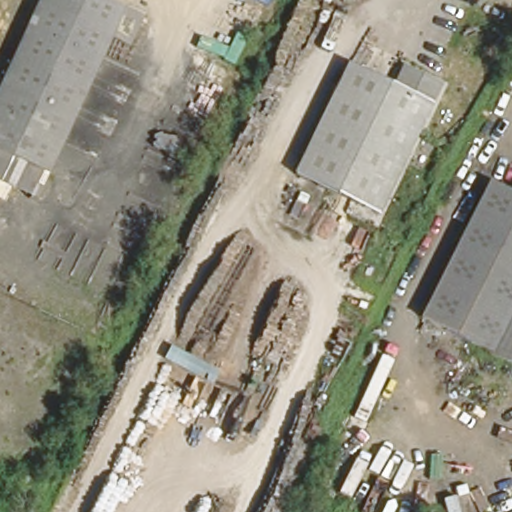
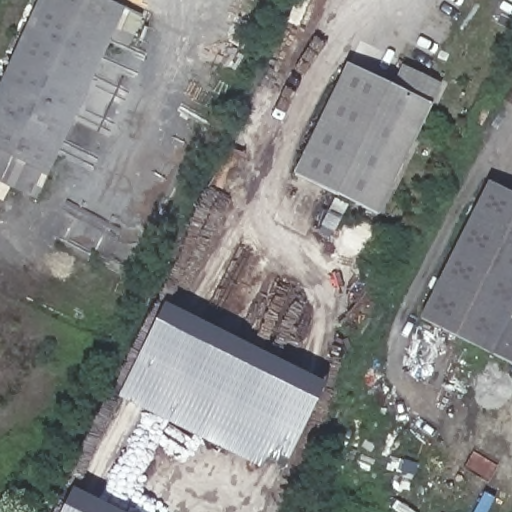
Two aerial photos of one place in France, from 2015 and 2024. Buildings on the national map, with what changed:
unchanged [(41,189),(0,169),(0,90),(42,0),(120,0),(124,2),(149,15),(134,45),(110,34),(49,167),(41,189)]
unchanged [(389,85),(399,65),(441,83),(377,212),(293,172),(347,65),(389,85)]
unchanged [(420,322),(486,185),(512,197),(512,312),(491,356),(420,322)]
unchanged [(0,194),(11,199),(4,215),(0,213),(0,194)]
new [(164,303),(326,384),(317,402),(279,478),(117,398),(155,322),(164,303)]
unchanged [(491,356),(512,312),(512,365),(491,356)]
new [(121,512),(61,512),(64,507),(73,488),(121,512)]

